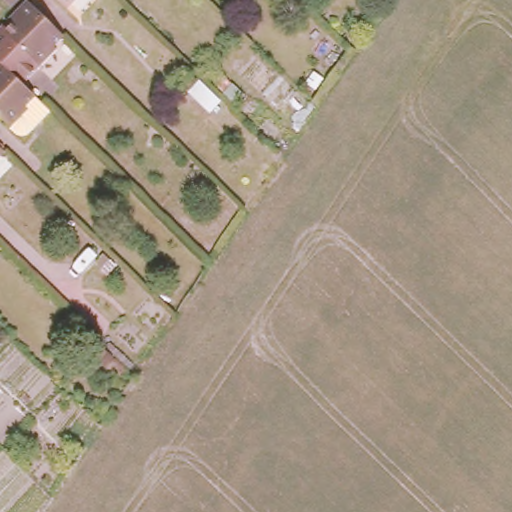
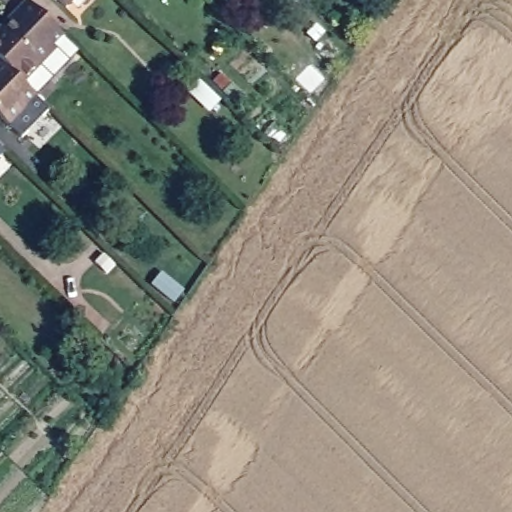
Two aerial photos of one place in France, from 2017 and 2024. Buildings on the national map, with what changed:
unchanged [(39,67),(2,31),(10,23),(5,18),(15,8),(22,0),(27,0),(62,33),(53,43),(56,47),(39,67)]
unchanged [(58,0),(74,0),(67,8),(58,0)]
unchanged [(0,116),(0,63),(50,109),(31,129),(18,133),(0,116)]
unchanged [(0,147),(2,148),(0,151),(0,147)]

